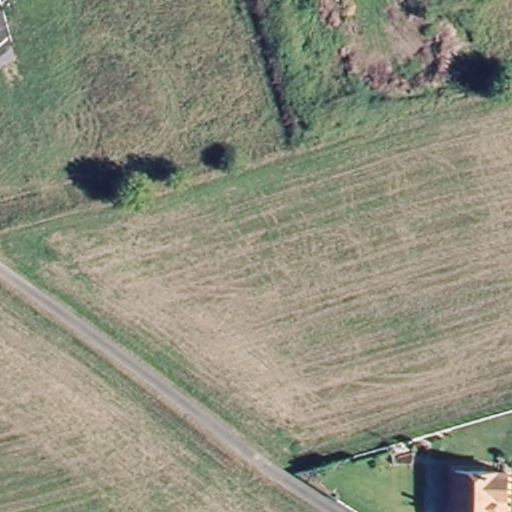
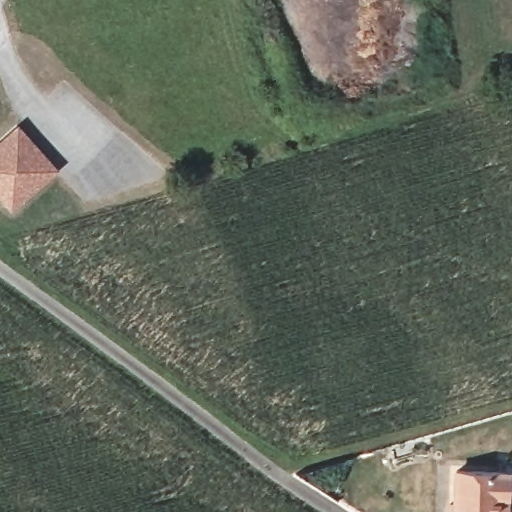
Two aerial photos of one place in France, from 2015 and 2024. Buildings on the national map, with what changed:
new [(57,170),(11,211),(0,198),(0,139),(18,122),(57,170)]
unchanged [(459,472),(508,473),(508,494),(508,512),(458,512),(459,472)]

